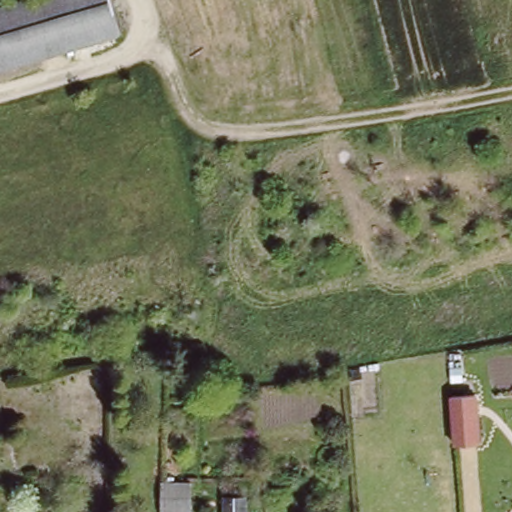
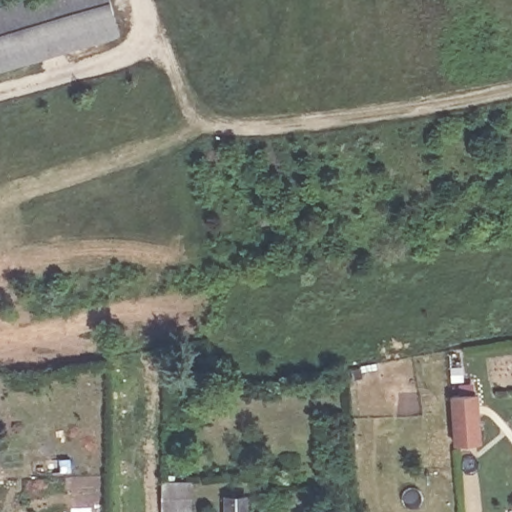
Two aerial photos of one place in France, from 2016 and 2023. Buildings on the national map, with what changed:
unchanged [(97,45),(57,57),(0,70),(0,11),(39,0),(84,0),(97,45)]
unchanged [(97,45),(84,0),(114,0),(124,37),(97,45)]
unchanged [(0,73),(0,70),(57,57),(0,73)]
unchanged [(450,396),(478,393),(481,443),(453,445),(450,396)]
unchanged [(155,512),(155,499),(155,482),(192,482),(192,498),(192,512),(155,512)]
unchanged [(221,512),(221,498),(241,497),(241,512),(221,512)]

